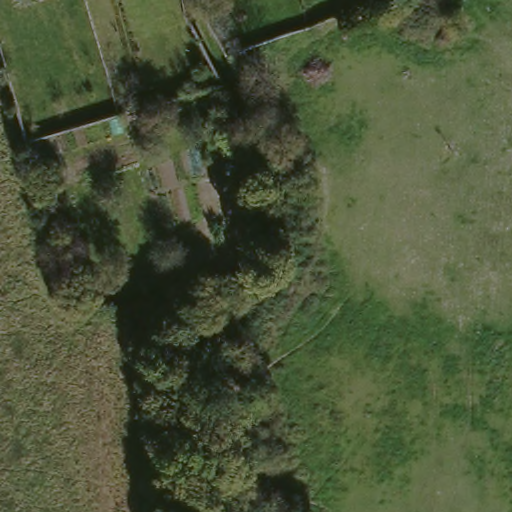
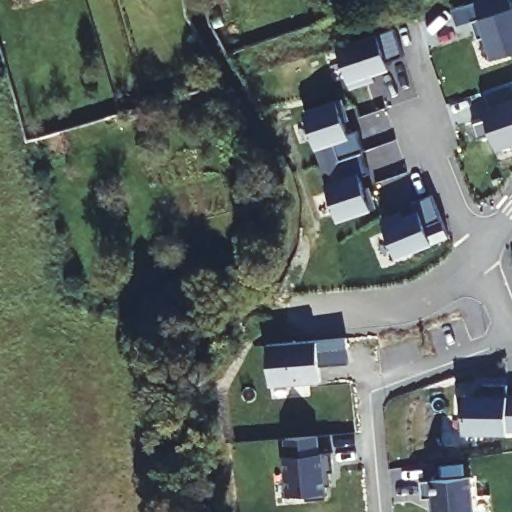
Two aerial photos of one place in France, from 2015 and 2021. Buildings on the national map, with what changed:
new [(476,0),(477,0),(512,0),(512,50),(495,56),(487,34),(479,37),(473,19),(481,16),(476,0)]
new [(348,85),(336,49),(377,35),(378,39),(395,32),(403,59),(387,65),(388,70),(373,75),(375,82),(351,91),(348,85)]
new [(483,108),(488,106),(483,90),(512,80),(512,142),(496,147),(491,131),(477,136),(472,121),(486,116),(483,108)]
new [(324,185),(312,150),(316,150),(303,113),(336,102),(342,100),(350,120),(343,122),(347,136),(356,132),(363,154),(370,175),(360,178),(363,189),(368,186),(377,209),(371,210),(337,222),(324,185)]
new [(382,226),(416,212),(412,204),(432,195),(448,237),(432,244),(395,259),(382,226)]
new [(265,345),(315,341),(347,337),(348,365),(320,367),(321,382),(268,387),(265,345)]
new [(472,395),(473,390),(482,390),(482,384),(506,385),(506,396),(512,396),(512,430),(505,430),(505,432),(461,432),(461,416),(456,416),(457,395),(472,395)]
new [(283,453),(282,436),(315,433),(316,451),(330,450),(331,470),(327,470),(327,483),(322,483),(322,496),(302,498),(302,492),(283,493),(280,454),(283,453)]
new [(432,497),(421,498),(420,482),(430,481),(472,475),(476,512),(434,512),(432,497)]

